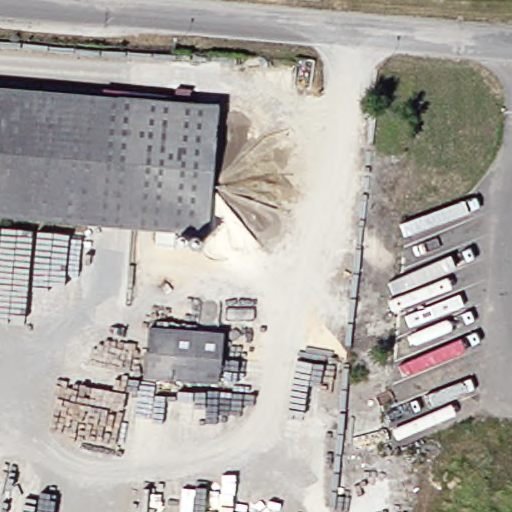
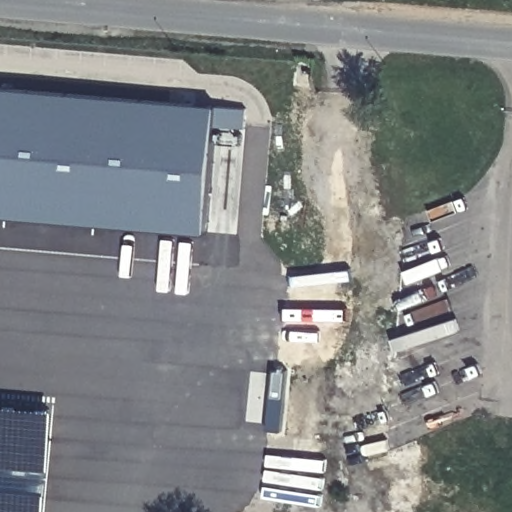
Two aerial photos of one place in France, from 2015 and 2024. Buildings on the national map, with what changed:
unchanged [(208,107),(200,232),(0,217),(0,91),(208,107)]
demolished [(221,334),(217,370),(165,364),(164,379),(142,376),(147,326),(221,334)]
new [(57,409),(48,512),(0,512),(0,404),(57,409)]

